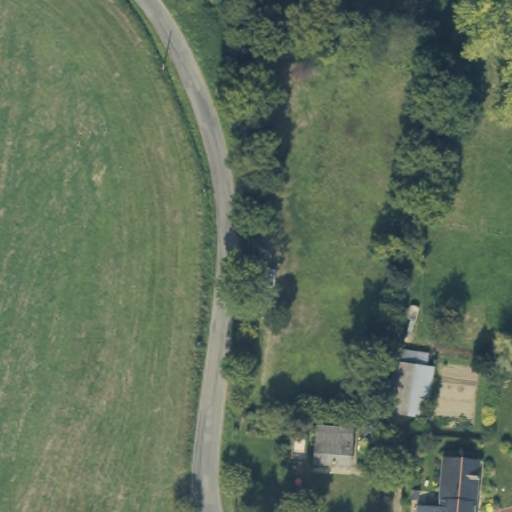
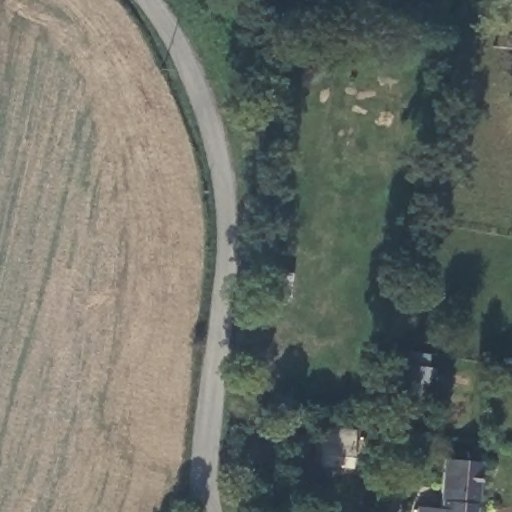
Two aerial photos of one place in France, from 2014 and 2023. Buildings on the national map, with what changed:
unchanged [(406,359),(425,362),(417,411),(398,408),(406,359)]
unchanged [(348,428),(345,462),(310,460),(314,425),(348,428)]
unchanged [(438,508),(442,460),(443,446),(451,446),(450,460),(478,462),(474,512),(417,512),(417,506),(438,508)]

